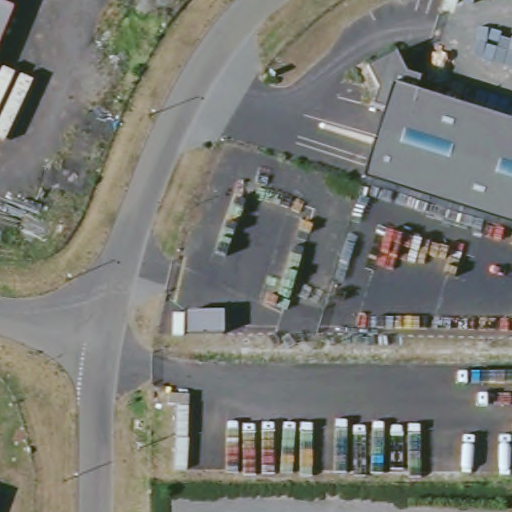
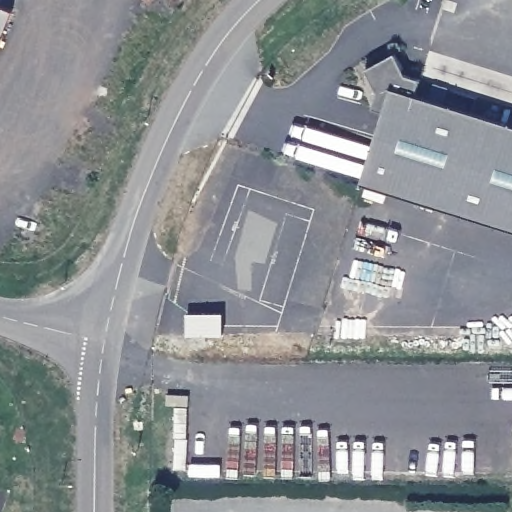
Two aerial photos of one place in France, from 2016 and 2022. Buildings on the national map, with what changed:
unchanged [(0,46),(0,5),(14,10),(0,46)]
unchanged [(373,109),(378,92),(366,69),(395,54),(407,75),(421,80),(417,95),(512,124),(512,230),(362,183),(385,112),(373,109)]

